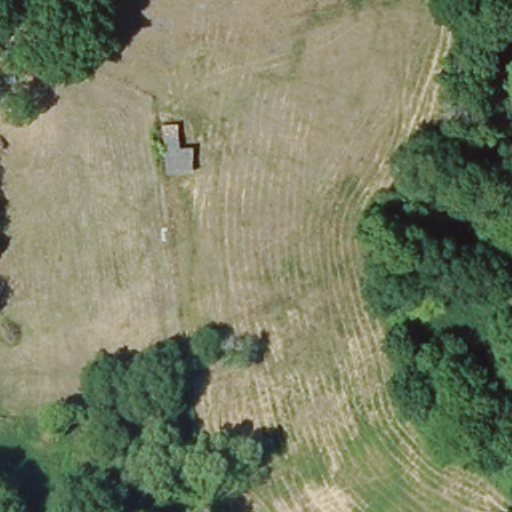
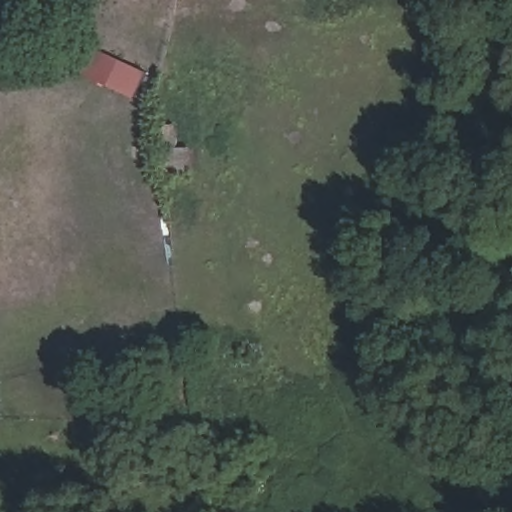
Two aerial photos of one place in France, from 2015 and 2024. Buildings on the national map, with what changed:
new [(148,72),(137,98),(89,78),(100,52),(148,72)]
unchanged [(163,125),(178,124),(180,147),(192,147),(192,174),(167,176),(163,125)]

